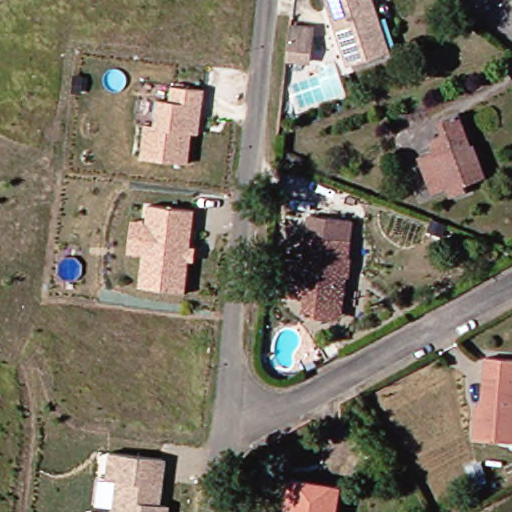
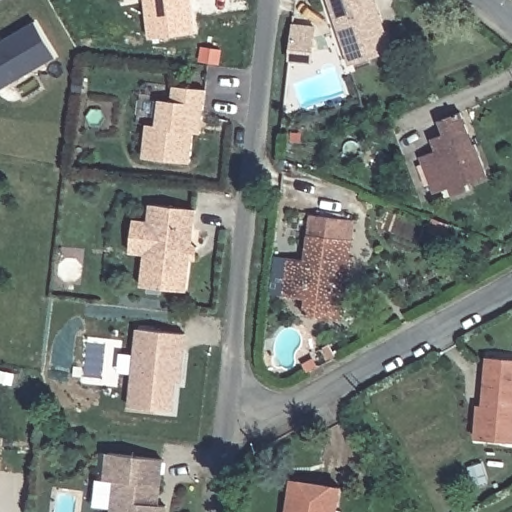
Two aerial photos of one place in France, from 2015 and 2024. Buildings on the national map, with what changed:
new [(151,37),(146,0),(191,0),(195,32),(151,37)]
unchanged [(331,0),(373,0),(379,16),(391,50),(352,62),(331,0)]
new [(55,57),(0,88),(0,41),(35,22),(55,57)]
unchanged [(297,60),(289,59),(292,25),(315,27),(313,51),(312,61),(297,60)]
unchanged [(193,132),(190,162),(142,157),(147,124),(156,125),(162,84),(206,90),(202,120),(200,133),(193,132)]
unchanged [(462,184),(465,190),(449,196),(446,187),(430,194),(416,157),(432,151),(427,139),(440,134),(435,120),(456,112),(468,145),(471,144),(483,176),(462,184)]
unchanged [(197,260),(191,259),(187,292),(142,287),(146,254),(131,252),(135,221),(150,222),(152,205),(196,210),(192,247),(198,247),(197,260)]
unchanged [(323,318),(300,315),(302,298),(280,295),(284,257),(302,260),(307,216),(349,221),(345,256),(347,256),(345,276),(342,276),(339,302),(337,320),(323,318)]
new [(184,384),(178,383),(175,412),(132,407),(140,329),(190,335),(184,384)]
unchanged [(484,405),(488,357),(512,359),(512,441),(476,438),(478,416),(479,405),(484,405)]
unchanged [(167,506),(166,512),(113,512),(117,481),(107,480),(110,452),(164,460),(159,495),(157,505),(167,506)]
unchanged [(292,480),(341,488),(337,512),(287,512),(292,480)]

